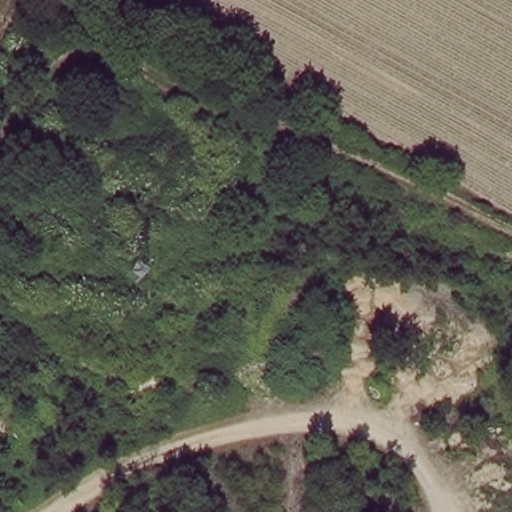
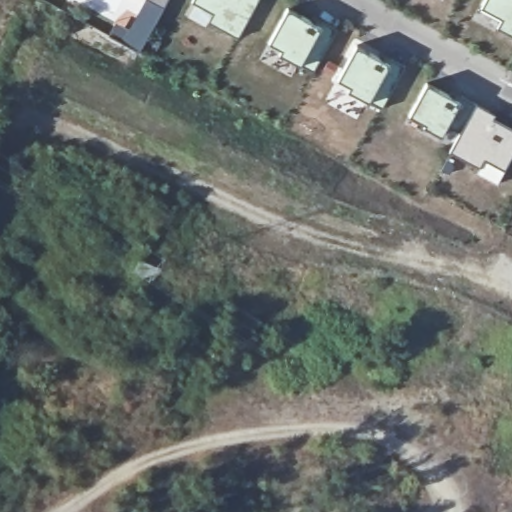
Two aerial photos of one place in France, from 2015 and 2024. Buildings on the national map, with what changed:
new [(164,6),(140,53),(110,36),(118,23),(130,29),(144,0),(151,0),(164,6)]
new [(164,6),(151,0),(167,0),(164,6)]
new [(234,39),(205,24),(210,13),(190,2),(191,0),(255,0),(234,39)]
new [(497,26),(502,18),(481,7),(485,0),(512,0),(512,35),(497,26)]
new [(314,70),(279,52),(281,47),(269,41),(288,6),(321,24),(323,19),(337,27),(314,70)]
new [(382,107),(348,89),(350,84),(338,78),(356,43),(390,61),(392,56),(406,64),(382,107)]
new [(460,131),(448,124),(442,134),(424,124),(425,122),(409,113),(427,81),(460,99),(462,94),(476,102),(460,131)]
new [(490,109),(487,113),(512,127),(512,156),(505,169),(484,158),(480,167),(450,150),(476,102),(490,109)]

